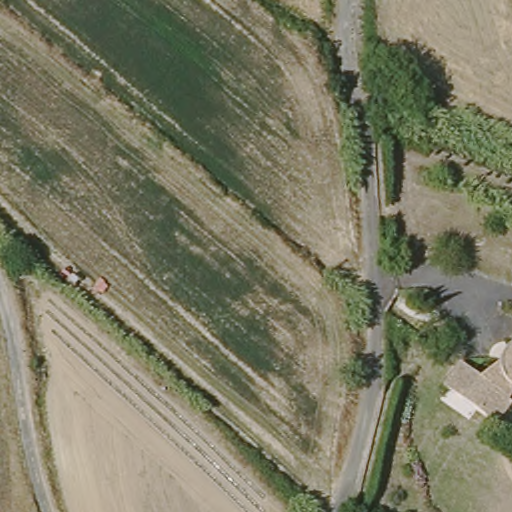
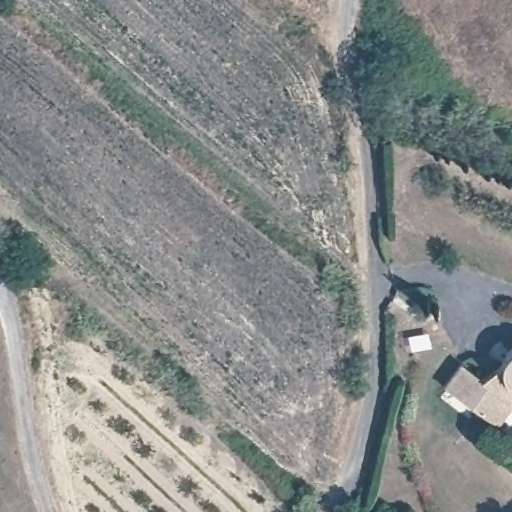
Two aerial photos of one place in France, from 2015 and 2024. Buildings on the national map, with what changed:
unchanged [(506,397),(510,403),(494,417),(491,423),(441,383),(459,360),(477,374),(481,372),(489,368),(495,362),(501,355),(504,347),(510,342),(512,342),(512,392),(506,397)]

